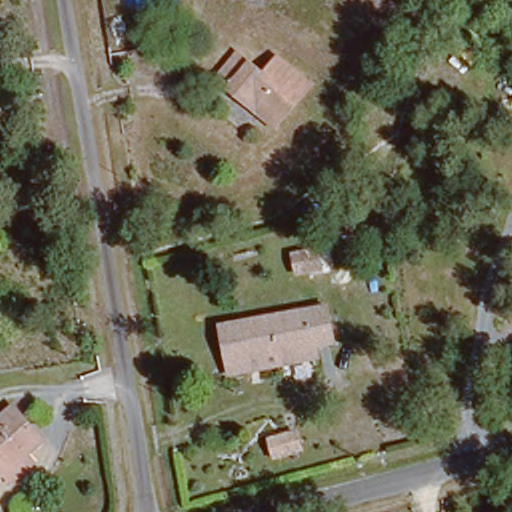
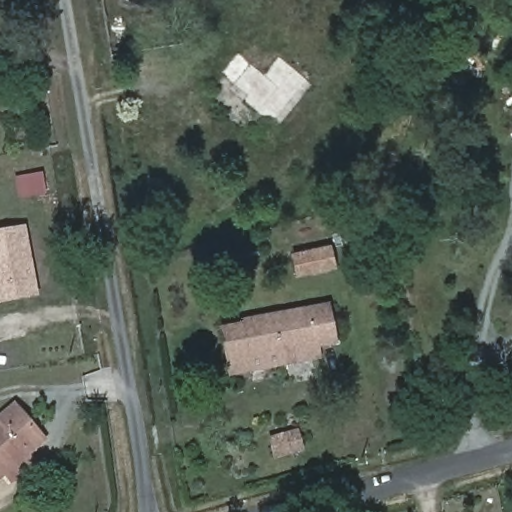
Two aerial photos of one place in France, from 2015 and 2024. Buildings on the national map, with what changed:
unchanged [(250,61),(276,83),(291,65),(317,86),(278,129),(242,97),(249,90),(236,78),(250,61)]
new [(46,196),(18,199),(16,177),(44,174),(46,196)]
new [(39,297),(0,304),(0,231),(26,226),(39,297)]
unchanged [(227,369),(225,356),(220,323),(328,305),(332,331),(320,333),(321,340),(281,346),(283,359),(227,369)]
unchanged [(46,439),(0,477),(0,419),(17,405),(46,439)]
unchanged [(303,449),(272,459),(267,436),(297,428),(303,449)]

